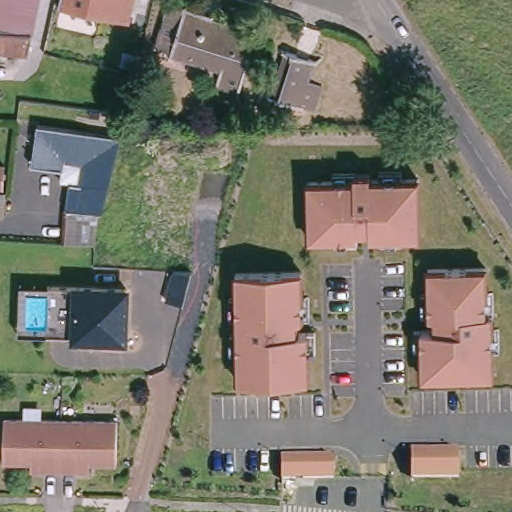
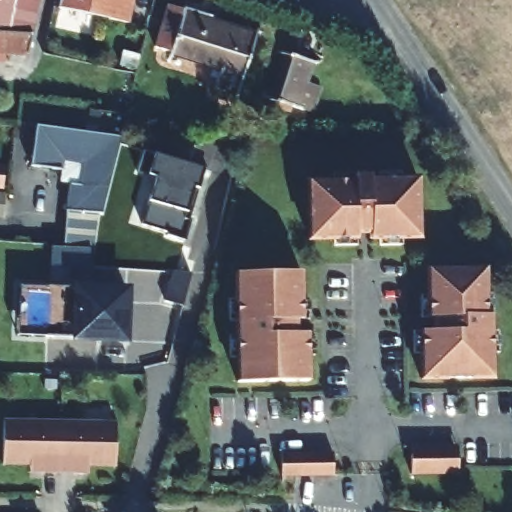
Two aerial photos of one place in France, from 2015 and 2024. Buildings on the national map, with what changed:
unchanged [(0,48),(0,0),(38,0),(30,36),(27,49),(0,48)]
unchanged [(62,0),(135,0),(128,26),(60,9),(62,0)]
unchanged [(218,10),(217,16),(247,23),(245,29),(261,34),(248,85),(222,78),(226,61),(162,43),(172,0),(182,0),(218,10)]
unchanged [(312,59),(298,105),(271,96),(285,51),(312,59)]
unchanged [(120,143),(117,151),(101,223),(96,222),(66,219),(67,214),(70,187),(80,188),(82,166),(62,163),(61,173),(30,169),(35,129),(120,143)]
new [(169,232),(142,225),(155,177),(137,173),(143,151),(202,168),(196,189),(192,187),(183,219),(190,221),(184,239),(167,235),(169,232)]
unchanged [(357,174),(357,168),(373,167),(373,173),(421,172),(422,231),(373,232),(373,226),(360,226),(360,232),(312,233),(310,175),(357,174)]
new [(1,168),(0,178),(0,168),(1,168)]
unchanged [(62,253),(66,219),(96,222),(92,256),(62,253)]
unchanged [(488,262),(488,309),(494,309),(495,338),(495,371),(445,372),(423,372),(423,324),(437,324),(436,311),(431,311),(430,263),(488,262)]
unchanged [(303,265),(305,313),(299,313),(300,326),(310,326),(310,374),(240,375),(238,266),(303,265)]
unchanged [(122,344),(67,341),(67,332),(15,330),(18,282),(69,285),(70,270),(126,273),(122,344)]
unchanged [(175,270),(194,271),(185,303),(167,299),(175,270)]
unchanged [(58,467),(42,467),(42,459),(2,459),(2,414),(59,415),(58,467)]
unchanged [(115,416),(115,460),(75,460),(75,468),(58,467),(59,415),(115,416)]
unchanged [(415,468),(415,448),(415,440),(462,439),(462,448),(462,467),(415,468)]
unchanged [(333,445),(333,449),(333,469),(304,469),(282,470),(281,446),(333,445)]

